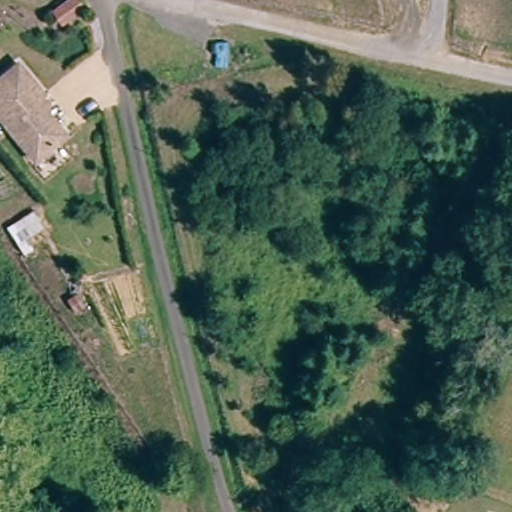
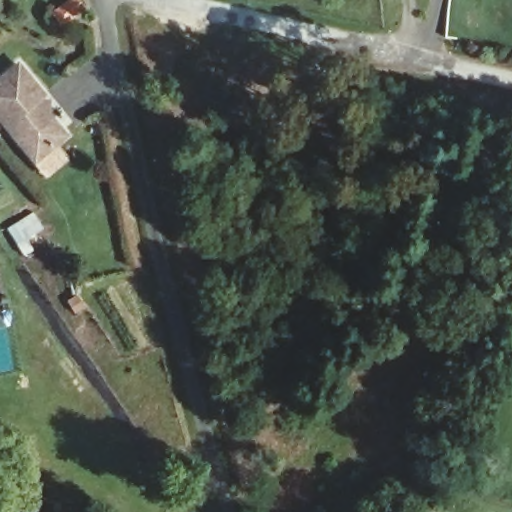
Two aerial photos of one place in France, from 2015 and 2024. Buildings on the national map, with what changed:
unchanged [(28,108),(35,116),(41,113),(56,129),(54,144),(29,166),(0,132),(0,81),(14,69),(38,98),(28,108)]
unchanged [(144,512),(124,512),(126,505),(144,512)]
unchanged [(106,509),(112,512),(104,512),(106,509)]

